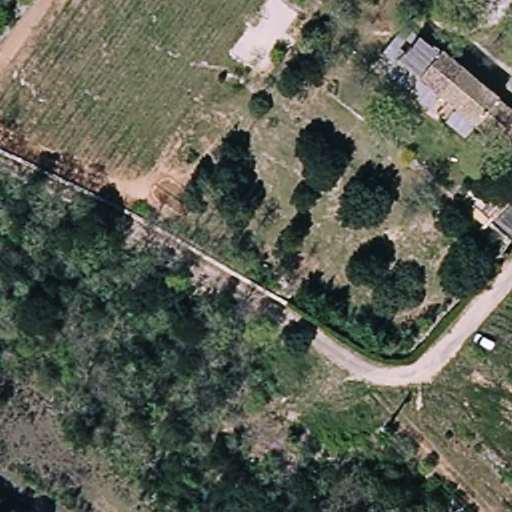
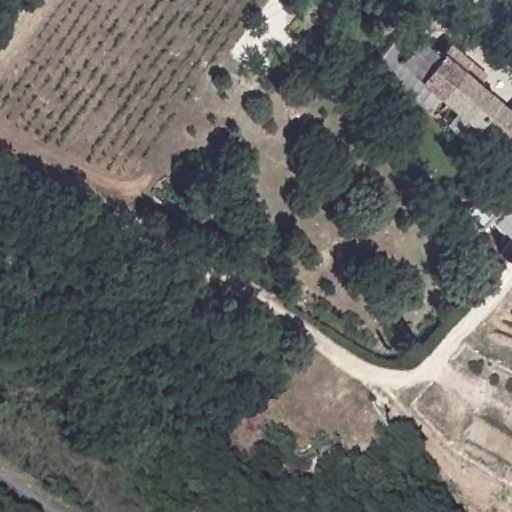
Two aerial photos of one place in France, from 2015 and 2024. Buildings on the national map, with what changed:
unchanged [(425,36),(401,61),(437,92),(424,108),(373,64),(410,23),(425,36)]
unchanged [(512,142),(504,137),(498,144),(437,92),(401,61),(425,36),(512,107),(512,142)]
unchanged [(512,148),(512,155),(509,153),(512,148)]

